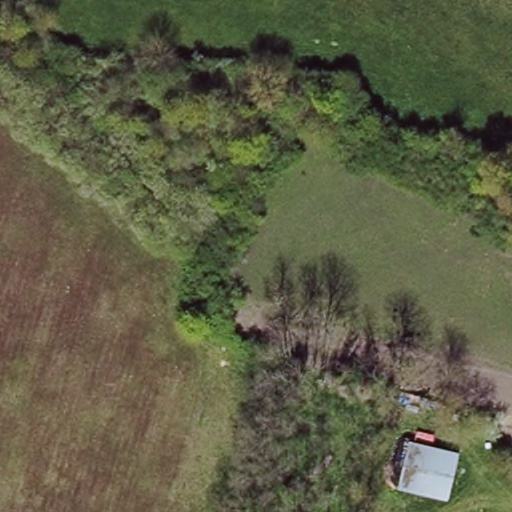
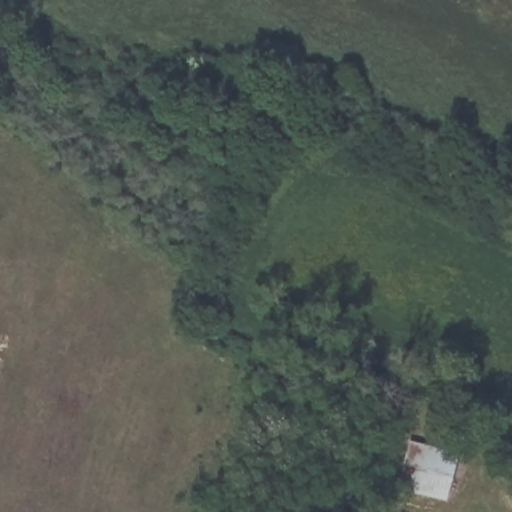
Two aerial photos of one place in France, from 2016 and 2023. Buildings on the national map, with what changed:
unchanged [(401,490),(410,440),(463,450),(451,501),(401,490)]

